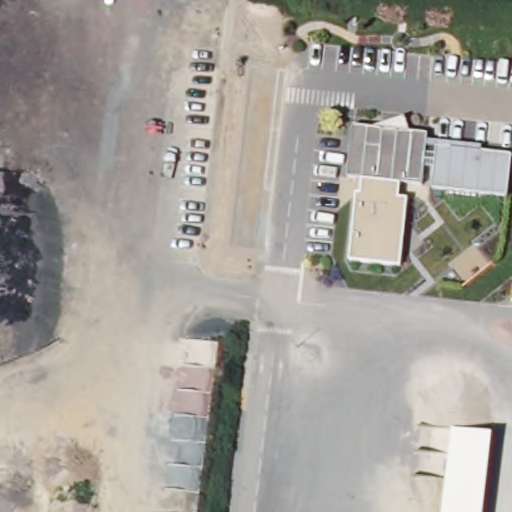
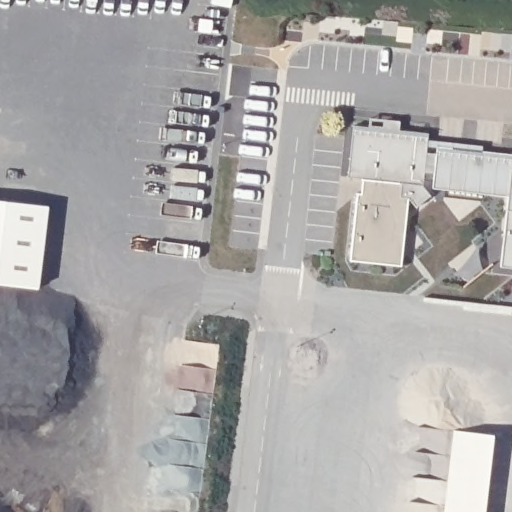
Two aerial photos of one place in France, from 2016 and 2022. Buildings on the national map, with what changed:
unchanged [(352,125),(427,133),(426,142),(423,171),(422,186),(348,176),(352,125)]
unchanged [(481,148),(482,156),(511,159),(508,200),(432,189),(433,172),(423,171),(425,149),(426,142),(481,148)]
unchanged [(401,183),(400,199),(410,200),(402,267),(349,261),(356,194),(360,194),(362,178),(401,183)]
new [(38,288),(0,283),(0,200),(47,206),(38,288)]
unchanged [(485,512),(444,512),(453,430),(493,436),(485,512)]

